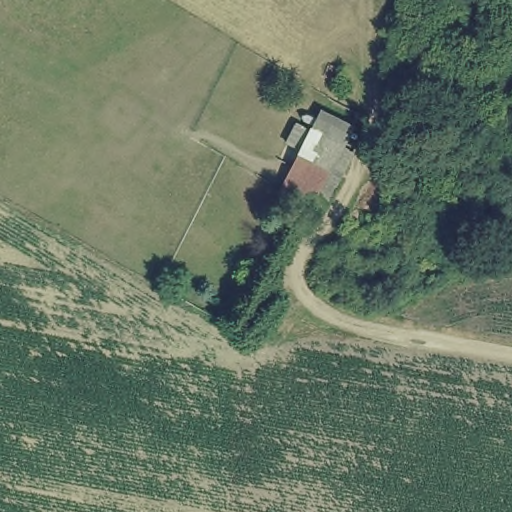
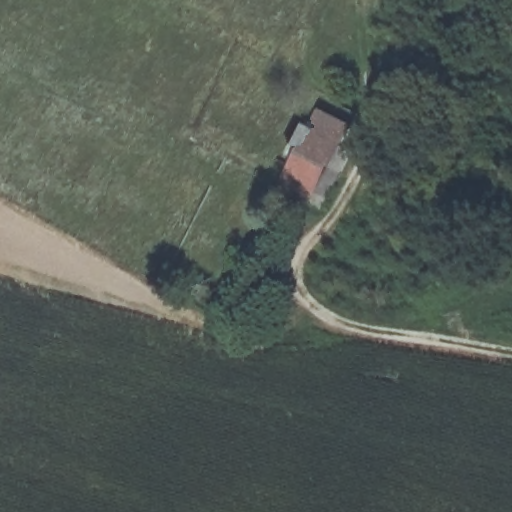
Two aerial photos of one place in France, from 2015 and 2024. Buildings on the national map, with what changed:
unchanged [(343,150),(358,160),(345,180),(339,177),(317,216),(273,194),(298,149),(281,143),(295,122),(308,130),(316,113),(352,126),(343,150)]

